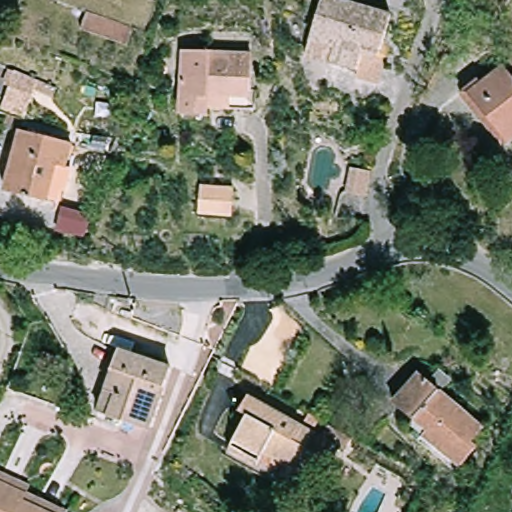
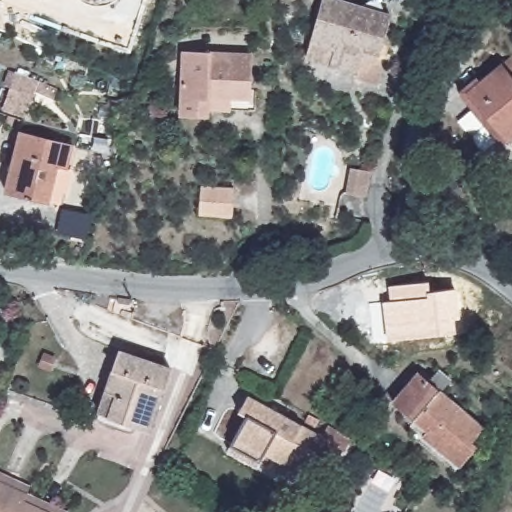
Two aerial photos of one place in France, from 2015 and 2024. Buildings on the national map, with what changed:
unchanged [(358,74),(361,66),(310,52),(326,0),(353,0),(394,12),(382,51),(390,54),(382,81),(358,74)]
demolished [(127,46),(81,30),(87,13),(133,29),(127,46)]
unchanged [(248,100),(254,100),(254,112),(206,110),(205,117),(179,116),(181,54),(250,57),(248,100)]
unchanged [(466,92),(508,59),(512,62),(512,137),(506,141),(499,147),(460,98),(466,92)]
unchanged [(57,86),(54,96),(35,89),(33,95),(8,87),(14,72),(57,86)]
unchanged [(8,187),(24,127),(82,142),(66,202),(8,187)]
unchanged [(120,136),(117,152),(82,142),(85,129),(120,136)]
unchanged [(350,166),(351,167),(369,172),(363,195),(344,191),(350,166)]
unchanged [(230,218),(197,214),(199,188),(232,191),(230,218)]
new [(60,213),(87,219),(80,247),(53,239),(60,213)]
new [(387,340),(382,302),(390,301),(388,286),(428,282),(429,292),(450,289),(456,289),(460,319),(454,319),(456,334),(387,340)]
unchanged [(95,414),(117,351),(169,369),(148,432),(95,414)]
unchanged [(414,429),(418,424),(422,420),(397,399),(422,371),(432,379),(442,368),(452,377),(444,387),(486,424),(473,438),(479,443),(462,462),(457,468),(414,429)]
unchanged [(253,454),(250,461),(222,446),(240,412),(233,408),(240,394),(316,434),(321,422),(330,426),(345,435),(339,447),(332,443),(314,478),(297,469),(294,476),(253,454)]
unchanged [(35,482),(31,488),(30,489),(72,508),(70,512),(65,512),(28,495),(63,512),(0,512),(0,465),(35,482)]

